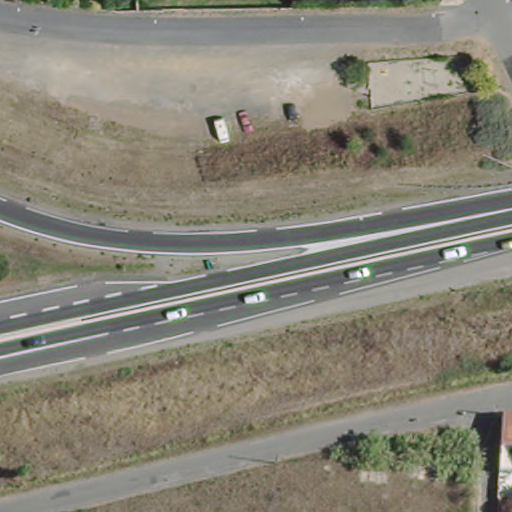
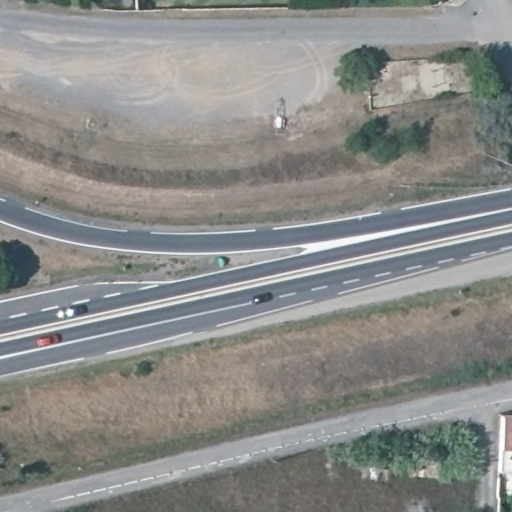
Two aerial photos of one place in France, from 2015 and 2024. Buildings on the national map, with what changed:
unchanged [(497,471),(502,415),(512,415),(512,471),(497,471)]

